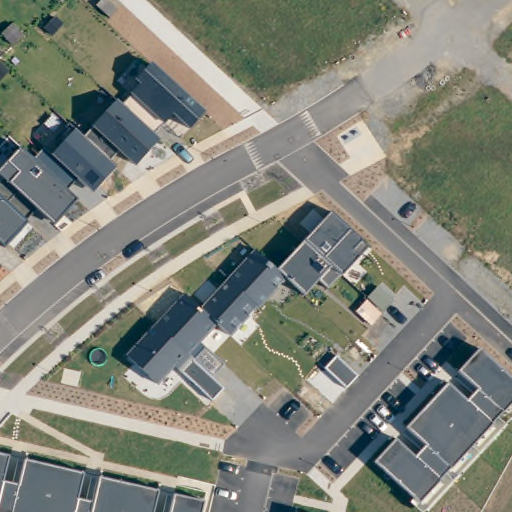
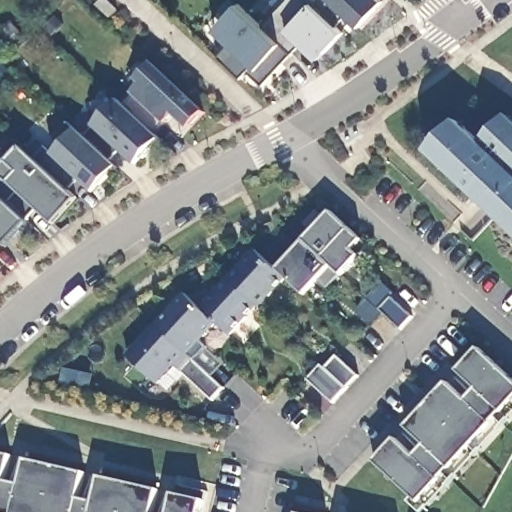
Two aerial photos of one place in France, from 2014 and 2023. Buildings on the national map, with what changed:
new [(285,0),(307,0),(335,26),(342,33),(319,59),(302,43),(291,54),(261,26),(285,0)]
new [(382,1),(358,27),(346,15),(335,26),(307,0),(380,0),(382,1)]
new [(237,4),(244,10),(261,26),(291,54),(262,85),(247,71),(241,78),(217,57),(229,44),(214,29),(237,4)]
unchanged [(172,115),(164,123),(155,136),(160,140),(136,166),(121,153),(111,165),(116,169),(93,193),(81,182),(70,195),(79,201),(54,225),(39,212),(28,223),(5,248),(0,243),(0,244),(0,193),(10,183),(0,175),(0,172),(22,149),(36,163),(46,148),(53,154),(62,143),(56,137),(67,124),(74,130),(84,138),(118,101),(124,107),(135,96),(132,93),(142,84),(136,80),(153,64),(206,113),(189,130),(172,115)]
new [(429,154),(459,121),(481,145),(508,115),(512,119),(512,232),(429,154)]
unchanged [(184,295),(200,310),(255,250),(279,270),(331,214),(361,241),(368,247),(359,258),(341,276),(328,288),(320,279),(305,295),(287,279),(231,336),(219,325),(198,343),(205,348),(194,361),(223,389),(213,400),(174,365),(158,385),(125,356),(184,295)]
unchanged [(415,458),(426,446),(407,427),(448,384),(467,401),(479,389),(460,371),(479,350),(512,381),(512,414),(421,512),(420,512),(408,502),(415,499),(376,463),(396,441),(415,458)]
new [(336,355),(358,376),(346,389),(324,368),(336,355)]
unchanged [(5,482),(20,486),(26,461),(85,474),(79,500),(95,504),(101,478),(159,492),(154,512),(0,512),(0,455),(11,456),(5,482)]
unchanged [(203,503),(201,512),(172,512),(177,496),(203,503)]

